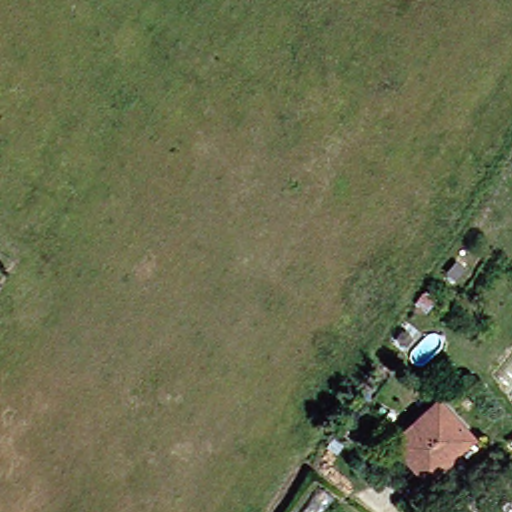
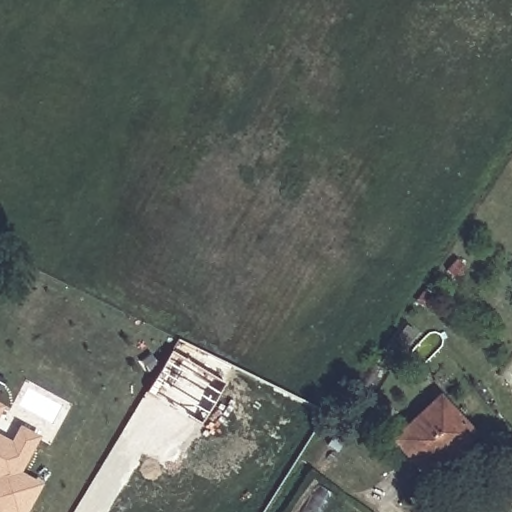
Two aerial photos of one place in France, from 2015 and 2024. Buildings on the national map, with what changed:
unchanged [(411,466),(382,435),(428,392),(462,430),(447,444),(417,472),(411,466)]
new [(0,406),(0,403),(1,404),(0,406)]
new [(37,436),(19,471),(41,482),(25,512),(0,512),(0,435),(9,440),(17,424),(37,436)]

